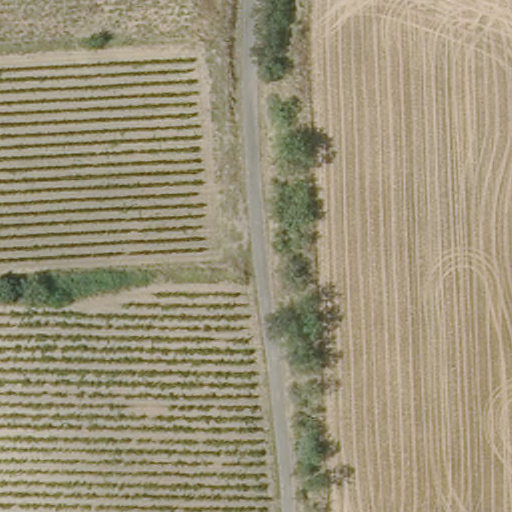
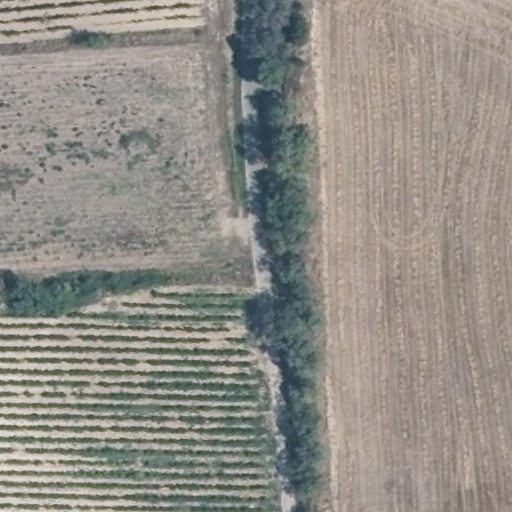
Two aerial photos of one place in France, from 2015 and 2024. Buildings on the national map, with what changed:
[]

